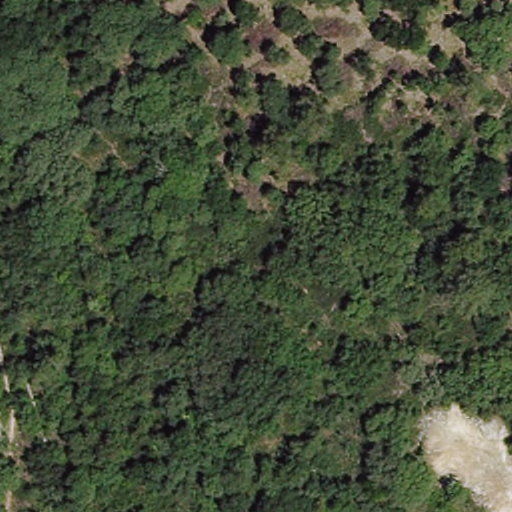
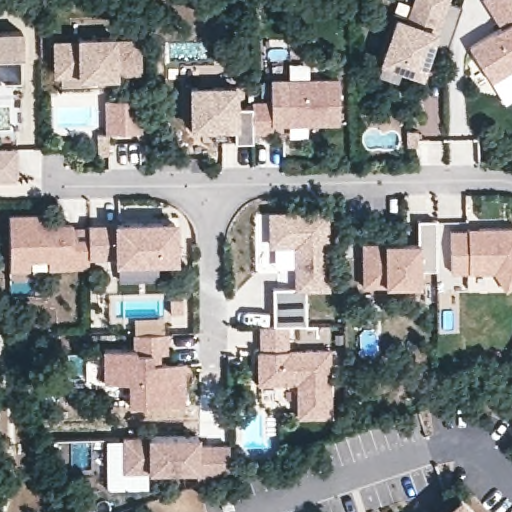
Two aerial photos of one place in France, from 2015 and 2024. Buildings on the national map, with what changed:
new [(409,21),(416,0),(445,0),(462,5),(448,47),(431,41),(420,73),(381,60),(396,17),(409,21)]
new [(488,0),(512,0),(512,67),(492,79),(471,45),(504,24),(488,0)]
new [(24,84),(0,84),(0,32),(23,31),(24,84)]
new [(55,40),(78,40),(77,35),(115,35),(115,40),(138,40),(138,71),(115,71),(116,75),(78,76),(78,70),(55,70),(55,40)]
new [(253,101),(272,101),(271,79),(340,79),(340,121),(273,122),(274,130),(253,131),(253,106),(253,101)]
new [(191,86),(236,85),(236,106),(253,106),(253,131),(253,141),(236,141),(235,125),(202,125),(202,130),(192,130),(192,125),(191,86)]
new [(110,154),(98,154),(98,134),(106,134),(105,99),(141,98),(141,133),(109,133),(110,154)]
new [(18,178),(0,179),(0,149),(18,148),(18,178)]
new [(340,288),(311,289),(311,323),(276,323),(276,284),(294,283),(293,244),(266,244),(266,209),(339,208),(339,220),(340,288)]
new [(50,211),(50,221),(73,221),(73,225),(89,225),(90,252),(90,263),(48,264),(48,254),(30,254),(30,264),(10,264),(10,212),(50,211)]
new [(419,241),(418,219),(436,219),(437,269),(419,269),(419,283),(364,284),(363,242),(419,241)]
new [(89,225),(89,223),(118,223),(118,220),(173,220),(173,257),(115,258),(115,251),(90,252),(89,225)]
new [(496,271),(468,271),(453,271),(452,229),(469,230),(469,225),(512,227),(512,287),(507,290),(496,271)]
new [(261,349),(261,323),(276,323),(311,323),(315,323),(316,349),(330,349),(331,416),(299,416),(298,382),(259,382),(259,349),(261,349)]
new [(135,346),(134,331),(166,331),(166,351),(159,351),(159,361),(183,361),(183,403),(130,403),(130,380),(104,380),(104,347),(135,346)]
new [(198,435),(199,444),(230,443),(230,471),(202,472),(201,468),(124,469),(123,436),(198,435)]
new [(460,495),(475,512),(441,512),(460,495)]

